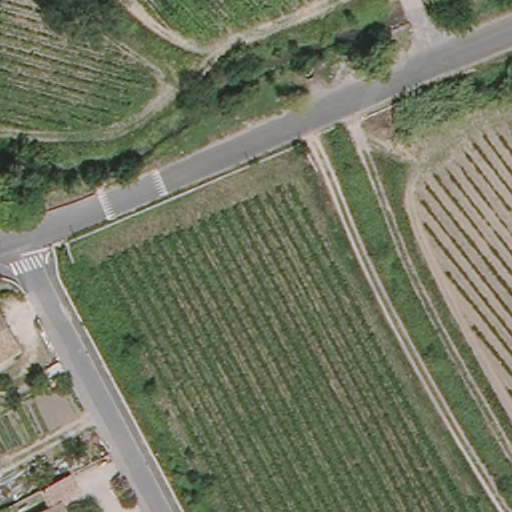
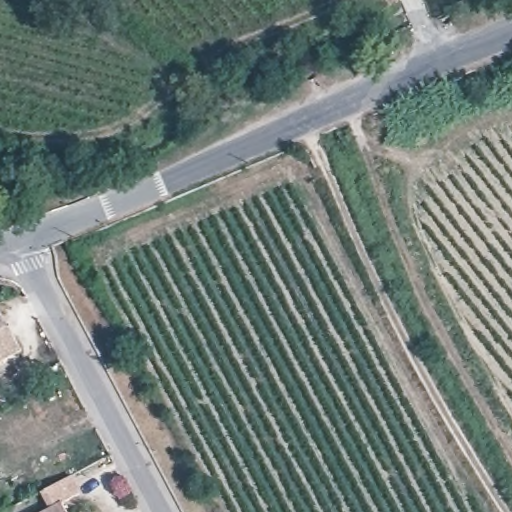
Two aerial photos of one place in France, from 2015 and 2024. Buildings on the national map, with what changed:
unchanged [(0,363),(0,312),(22,350),(0,363)]
unchanged [(68,512),(43,512),(51,507),(42,490),(71,475),(81,492),(63,502),(68,512)]

